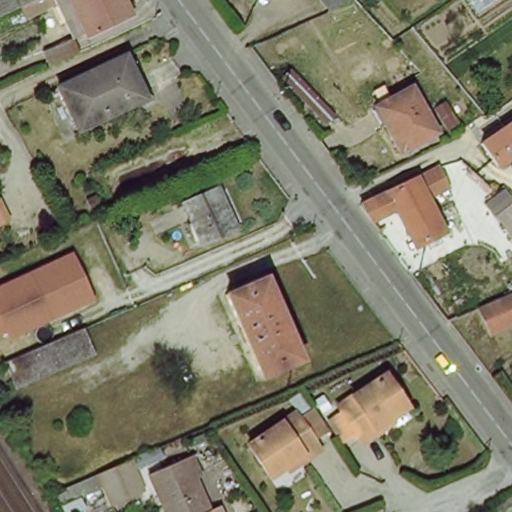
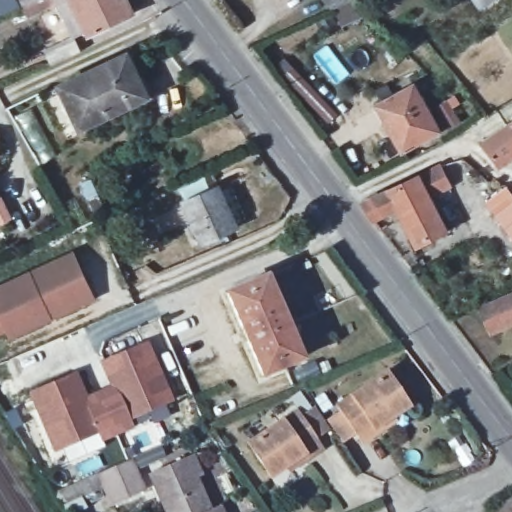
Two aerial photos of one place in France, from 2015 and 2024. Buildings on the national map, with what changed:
unchanged [(0,22),(0,0),(48,0),(35,6),(23,11),(4,21),(0,22)]
unchanged [(92,36),(90,32),(78,38),(61,0),(130,0),(138,16),(92,36)]
unchanged [(356,0),(330,11),(325,0),(356,0)]
unchanged [(63,65),(55,49),(78,38),(84,55),(63,65)]
unchanged [(81,125),(63,83),(129,54),(147,98),(81,125)]
unchanged [(406,150),(383,100),(418,83),(442,133),(406,150)]
unchanged [(506,166),(488,140),(512,124),(512,162),(506,166)]
unchanged [(450,190),(434,197),(446,231),(416,243),(399,207),(375,218),(363,202),(439,166),(450,190)]
new [(512,192),(512,239),(511,240),(483,201),(506,184),(512,192)]
unchanged [(201,240),(184,202),(218,187),(236,226),(201,240)]
unchanged [(95,297),(51,317),(11,336),(8,328),(0,332),(0,286),(73,252),(82,270),(95,297)]
unchanged [(250,333),(231,292),(270,275),(288,316),(250,333)]
unchanged [(497,333),(486,306),(512,296),(512,327),(497,333)]
unchanged [(305,357),(265,372),(250,333),(288,316),(305,357)]
demolished [(98,354),(23,387),(10,361),(88,327),(98,354)]
new [(113,385),(101,360),(146,341),(171,398),(128,416),(131,424),(116,430),(99,391),(113,385)]
unchanged [(331,421),(348,410),(342,402),(389,371),(415,404),(396,416),(400,421),(383,433),(369,441),(363,432),(347,443),(331,421)]
new [(75,372),(85,397),(99,391),(116,430),(102,437),(98,429),(55,448),(30,391),(75,372)]
unchanged [(287,463),(269,475),(250,445),(296,415),(296,417),(317,404),(332,428),(312,441),(318,450),(305,458),(291,467),(287,463)]
unchanged [(201,512),(169,512),(153,473),(193,457),(214,507),(201,512)]
unchanged [(145,492),(118,503),(113,492),(68,511),(56,492),(105,471),(133,459),(145,492)]
unchanged [(497,509),(512,497),(512,512),(499,512),(497,509)]
unchanged [(215,512),(201,512),(214,507),(215,512)]
unchanged [(226,511),(226,512),(221,512),(226,511)]

